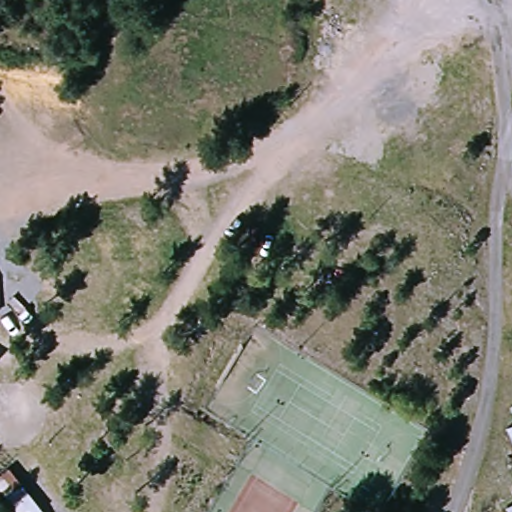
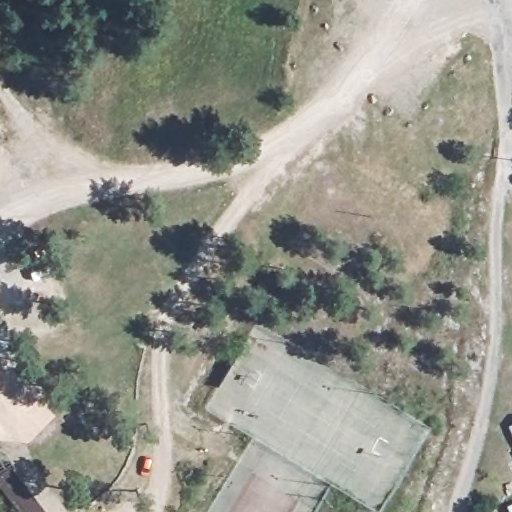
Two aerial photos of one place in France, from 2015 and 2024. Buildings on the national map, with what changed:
unchanged [(0,360),(0,353),(3,356),(0,360)]
unchanged [(41,512),(19,512),(0,488),(0,473),(8,468),(41,512)]

